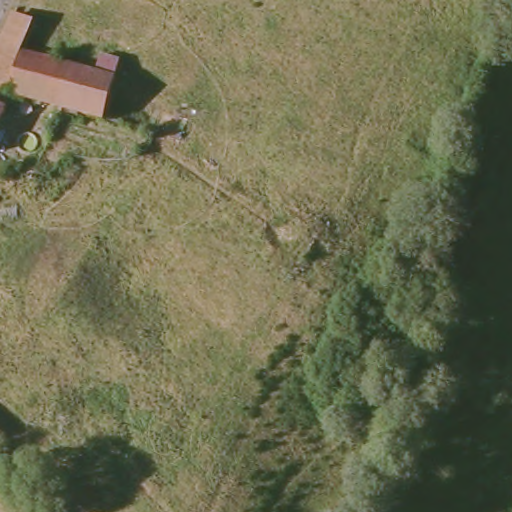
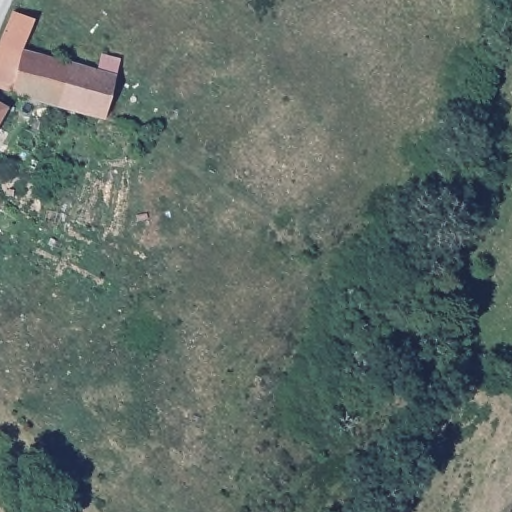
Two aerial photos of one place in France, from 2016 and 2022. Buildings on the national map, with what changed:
unchanged [(111,115),(110,119),(5,90),(0,87),(0,33),(9,11),(30,19),(18,47),(92,69),(96,51),(114,56),(109,74),(103,98),(114,101),(111,115)]
unchanged [(0,102),(0,100),(1,101),(0,102)]
unchanged [(152,121),(151,128),(144,126),(146,119),(152,121)]

